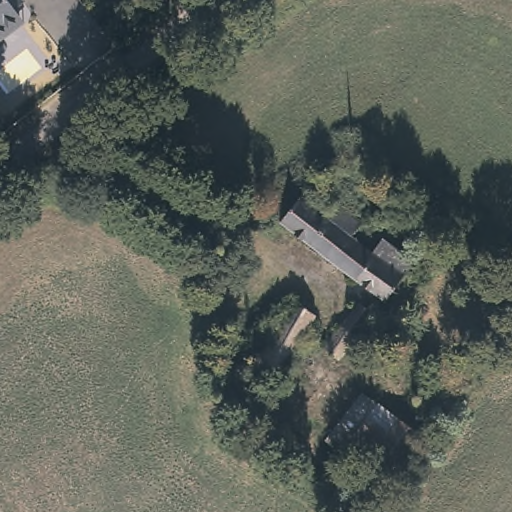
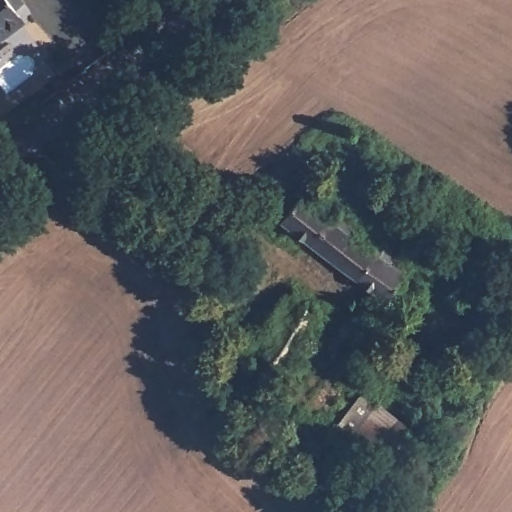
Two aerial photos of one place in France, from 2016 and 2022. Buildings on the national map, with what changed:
unchanged [(16,0),(19,4),(12,10),(16,16),(20,22),(0,37),(0,0),(16,0)]
unchanged [(324,224),(335,212),(358,231),(349,242),(369,257),(381,243),(412,267),(381,305),(277,227),(297,203),(324,224)]
unchanged [(225,263),(220,274),(195,264),(202,251),(225,263)]
unchanged [(309,317),(275,372),(254,359),(290,302),(309,317)]
unchanged [(370,312),(336,358),(322,348),(356,302),(370,312)]
unchanged [(375,364),(369,372),(352,361),(357,352),(375,364)]
unchanged [(323,442),(359,392),(376,405),(339,454),(323,442)]
unchanged [(359,469),(339,454),(376,405),(417,436),(367,499),(347,484),(359,469)]

